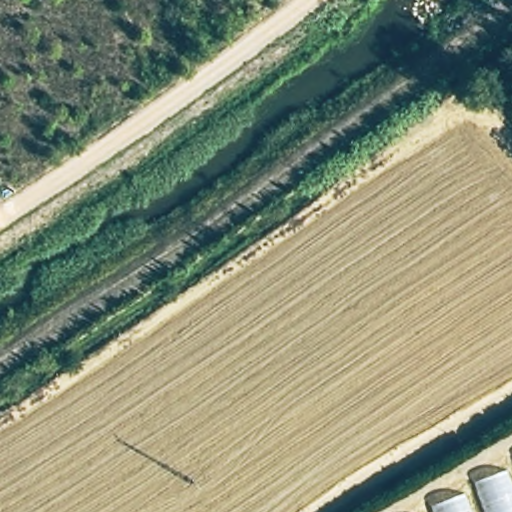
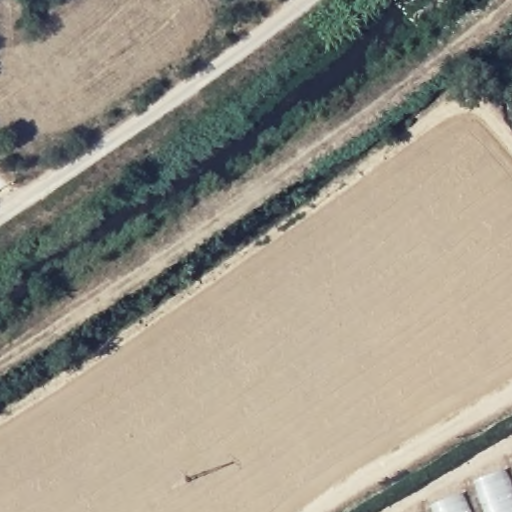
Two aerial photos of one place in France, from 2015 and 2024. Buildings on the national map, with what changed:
unchanged [(512,465),(512,512),(426,512),(512,465)]

